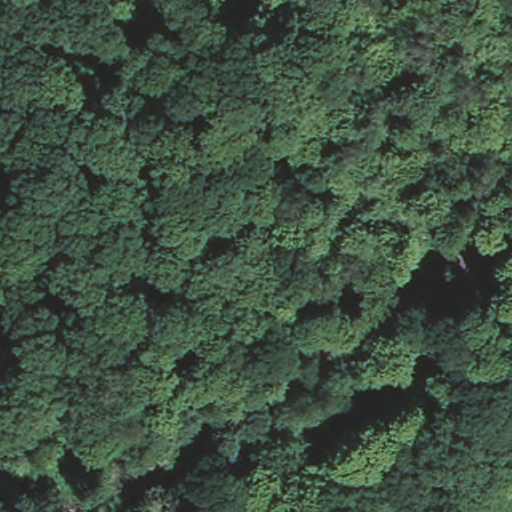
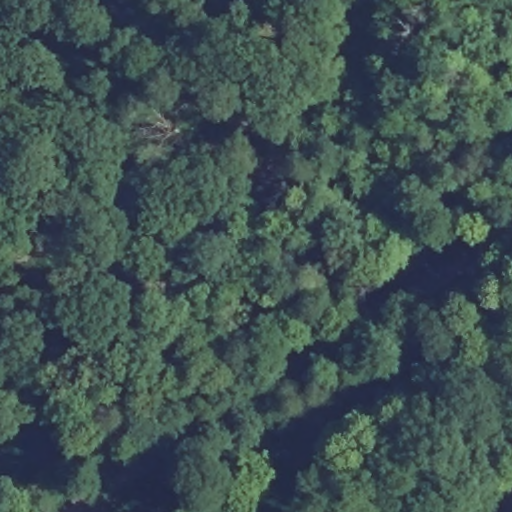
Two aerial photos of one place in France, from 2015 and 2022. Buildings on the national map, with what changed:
unchanged [(475,512),(457,512),(470,505),(475,512)]

